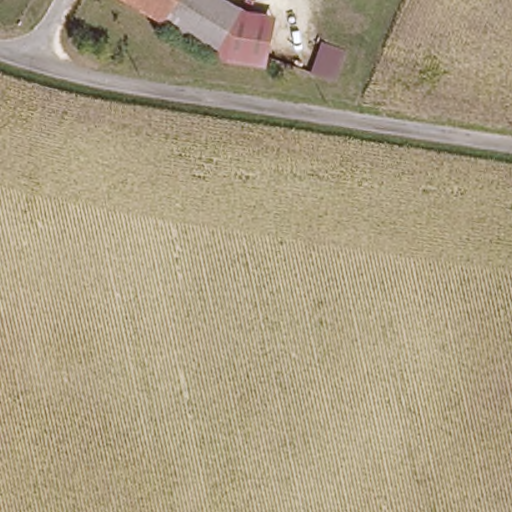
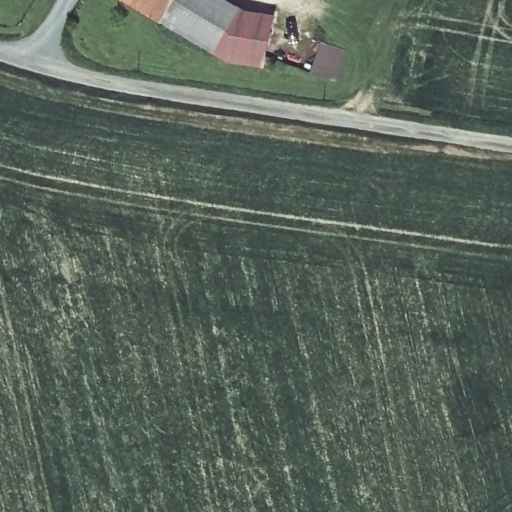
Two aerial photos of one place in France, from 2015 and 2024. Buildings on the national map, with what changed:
unchanged [(236,6),(270,15),(256,67),(213,56),(160,24),(118,0),(226,0),(236,6)]

